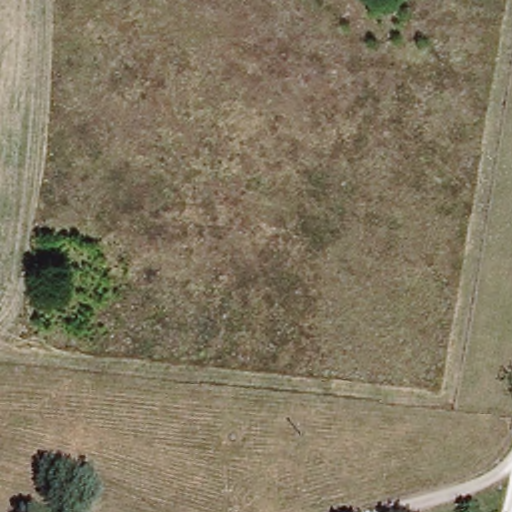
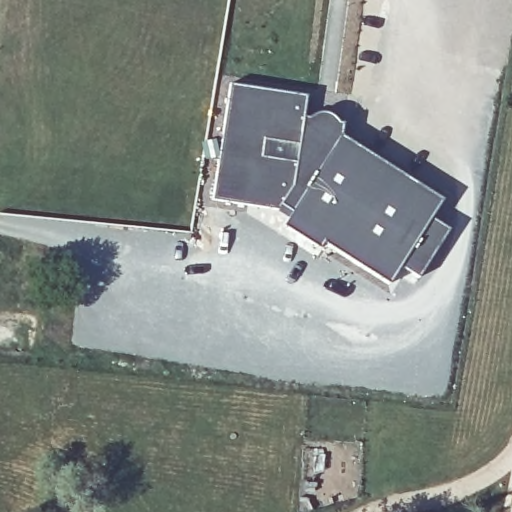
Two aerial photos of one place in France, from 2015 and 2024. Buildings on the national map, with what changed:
new [(223,86),(300,98),(297,123),(308,125),(309,119),(326,120),(325,128),(336,129),(335,138),(436,201),(425,219),(443,230),(413,279),(395,269),(383,287),(317,245),(313,252),(277,229),(286,214),(206,203),(223,86)]

